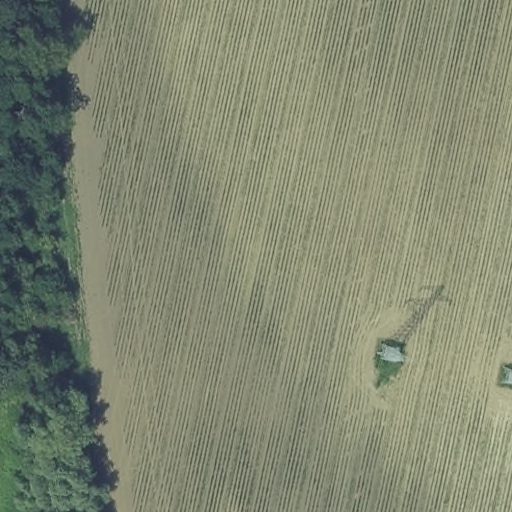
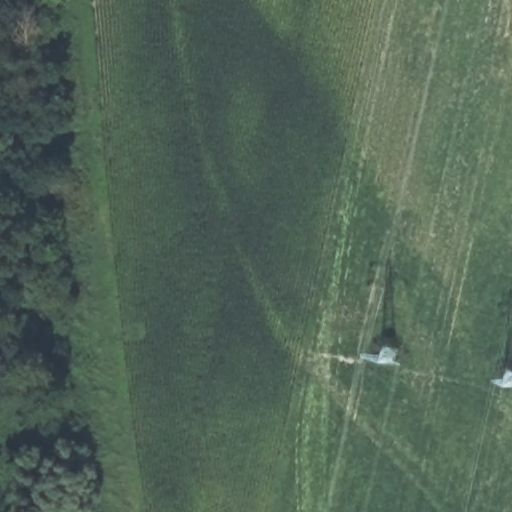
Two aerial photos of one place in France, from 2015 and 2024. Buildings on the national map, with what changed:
unchanged [(16,511),(37,505),(39,512),(16,512),(16,511)]

